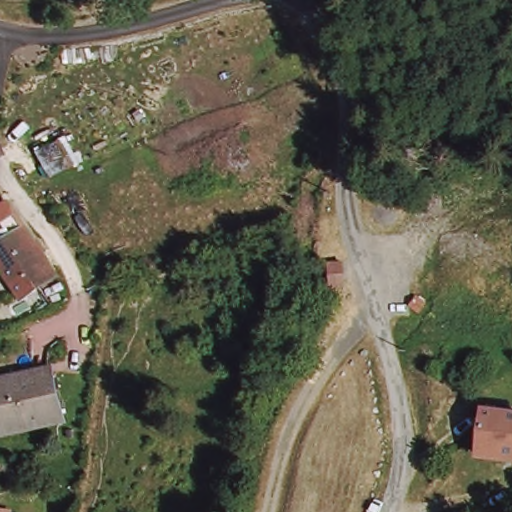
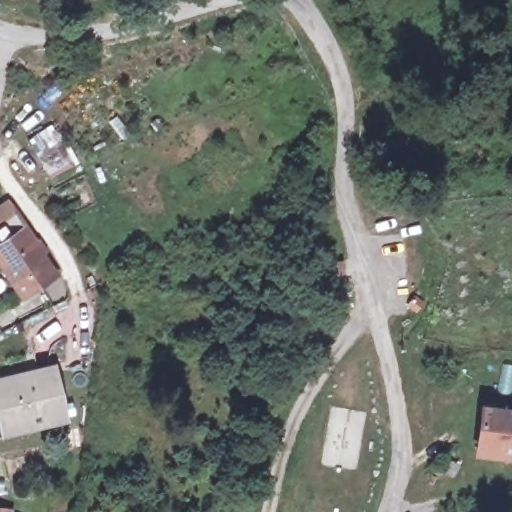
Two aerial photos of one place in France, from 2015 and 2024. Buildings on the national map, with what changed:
unchanged [(25,301),(0,264),(0,230),(17,217),(60,278),(25,301)]
unchanged [(0,423),(0,391),(49,379),(61,425),(3,440),(0,423)]
unchanged [(512,453),(482,452),(485,414),(512,416),(512,453)]

